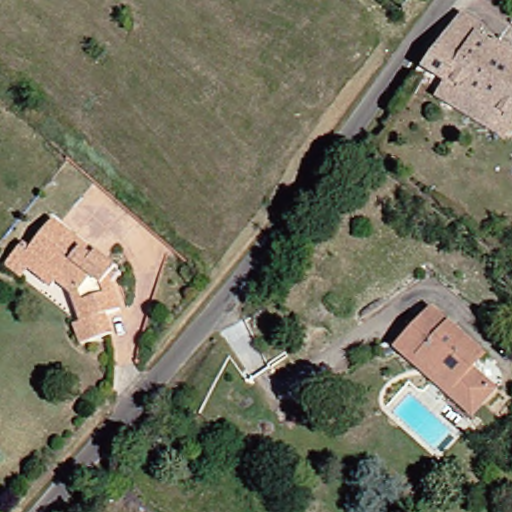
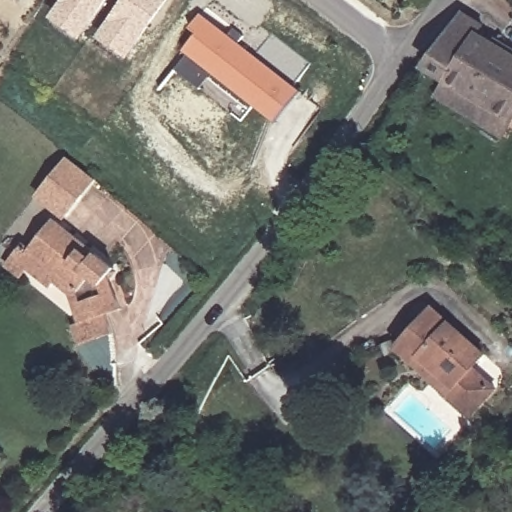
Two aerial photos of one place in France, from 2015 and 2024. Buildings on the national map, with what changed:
new [(79,35),(51,15),(62,0),(105,0),(79,35)]
new [(123,0),(164,0),(127,55),(99,35),(123,0)]
unchanged [(477,34),(512,55),(512,120),(511,120),(449,83),(424,68),(430,57),(461,13),(483,26),(477,34)]
new [(295,85),(305,91),(279,122),(256,105),(253,109),(212,76),(201,89),(178,70),(191,55),(186,50),(198,34),(190,29),(203,14),(258,56),(274,32),(312,62),(295,85)]
unchanged [(439,100),(449,83),(511,120),(501,137),(439,100)]
new [(65,158),(94,181),(64,217),(35,195),(65,158)]
unchanged [(51,285),(46,290),(22,270),(14,277),(2,267),(18,247),(24,250),(37,236),(48,223),(58,230),(108,268),(104,277),(113,312),(99,316),(102,335),(77,342),(69,343),(64,325),(70,323),(72,322),(67,299),(51,285)]
unchanged [(461,416),(438,395),(403,365),(385,348),(421,308),(474,355),(462,368),(485,389),(461,416)]

